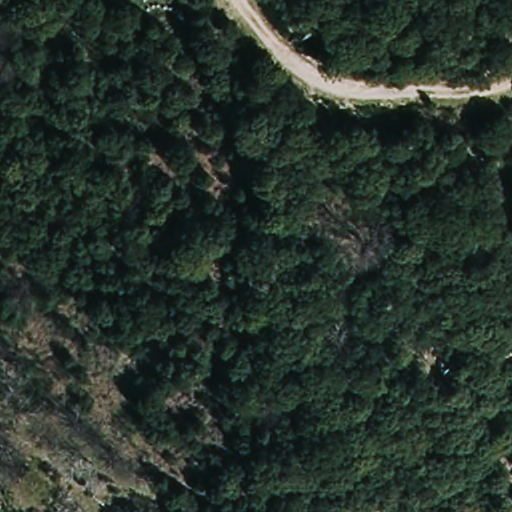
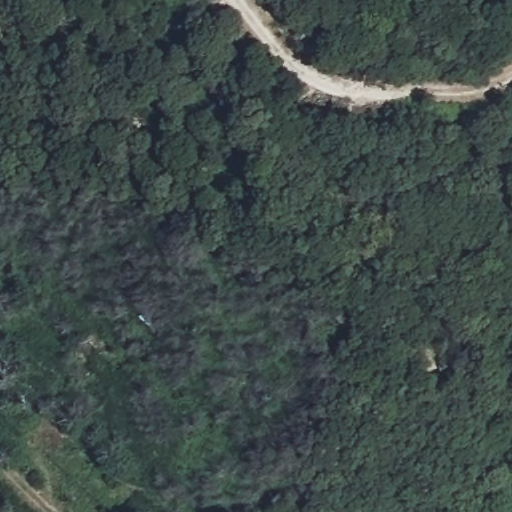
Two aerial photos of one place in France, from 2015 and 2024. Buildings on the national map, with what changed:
unchanged [(398,152),(398,169),(381,168),(381,152),(398,152)]

